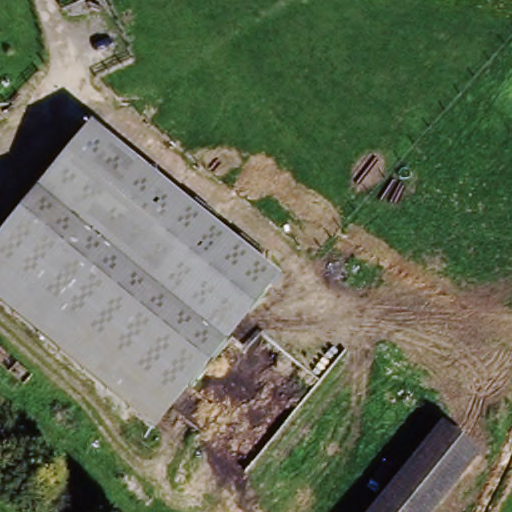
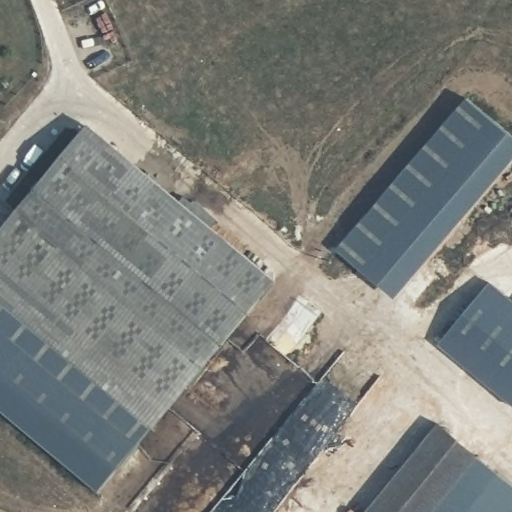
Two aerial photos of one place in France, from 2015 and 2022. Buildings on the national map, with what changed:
new [(512,162),(395,298),(336,250),(466,97),(512,137),(512,162)]
unchanged [(274,282),(116,478),(0,383),(0,231),(87,129),(274,282)]
new [(512,406),(438,345),(490,282),(512,300),(512,406)]
new [(113,476),(99,493),(0,411),(0,383),(113,476)]
unchanged [(478,460),(435,512),(365,512),(435,426),(478,460)]
new [(512,512),(435,512),(478,460),(512,487),(512,512)]

